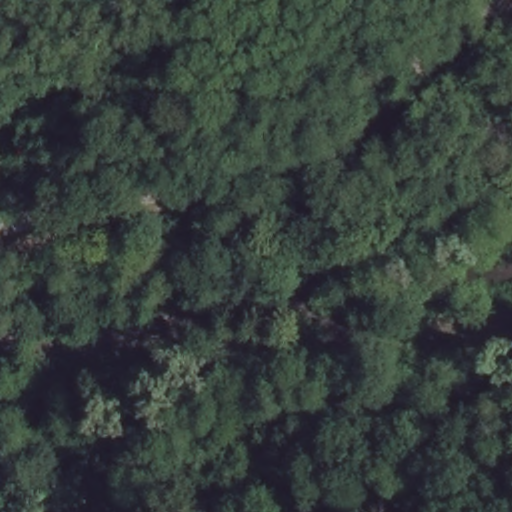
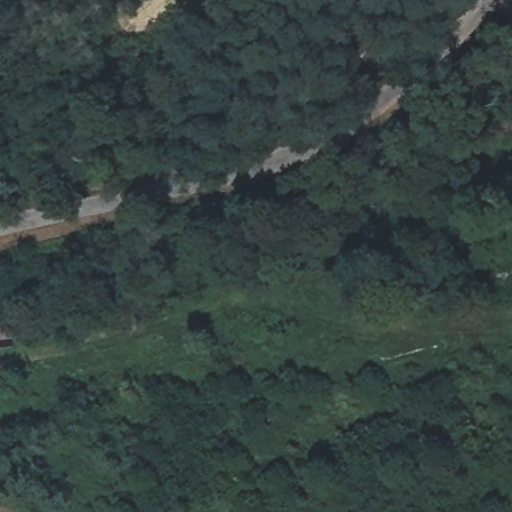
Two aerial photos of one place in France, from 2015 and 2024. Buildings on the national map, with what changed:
unchanged [(14,339),(14,344),(0,347),(0,321),(16,318),(15,325),(14,339)]

